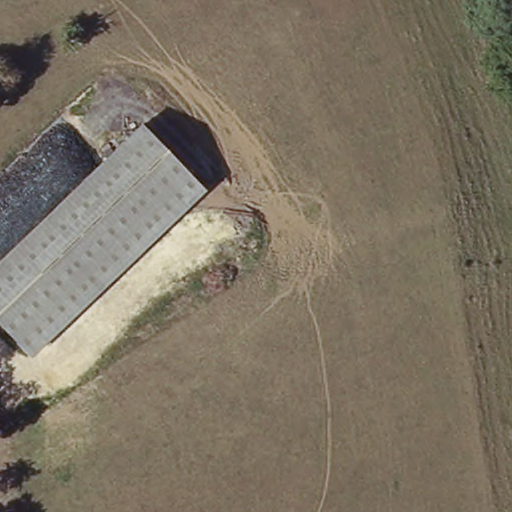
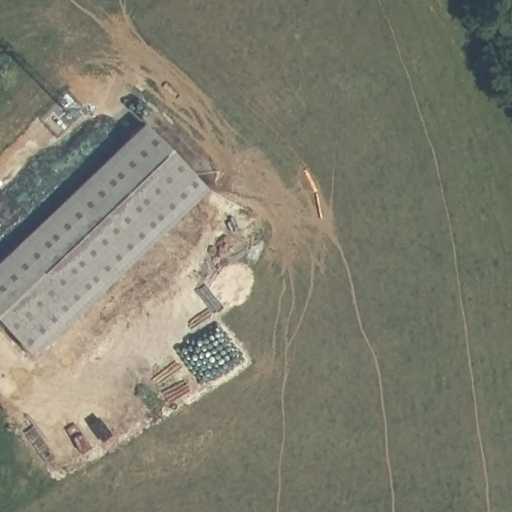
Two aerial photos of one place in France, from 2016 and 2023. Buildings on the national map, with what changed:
unchanged [(141,123),(206,189),(30,358),(0,326),(0,258),(141,123)]

